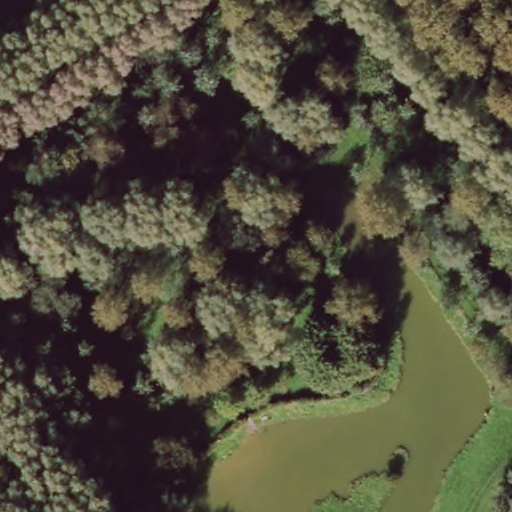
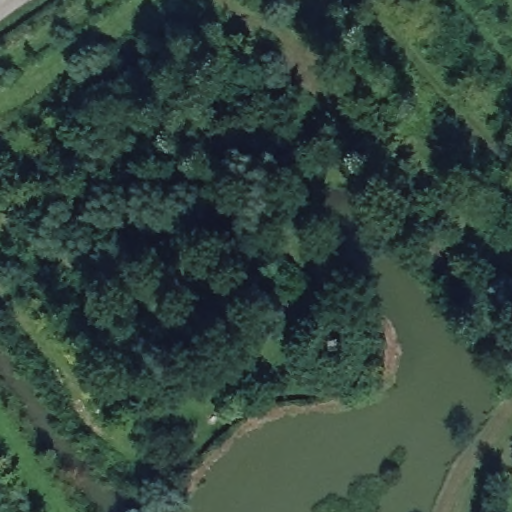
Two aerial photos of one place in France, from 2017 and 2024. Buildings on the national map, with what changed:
[]

